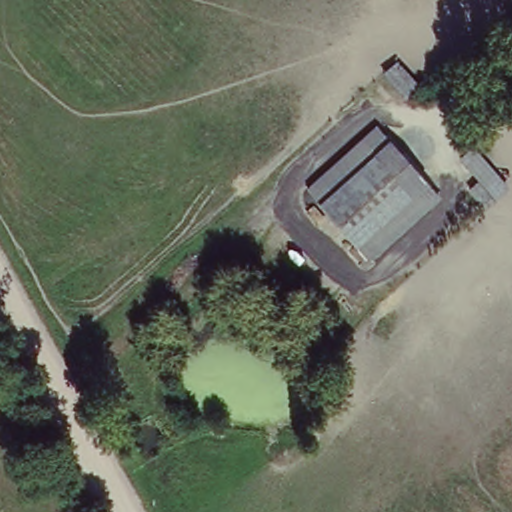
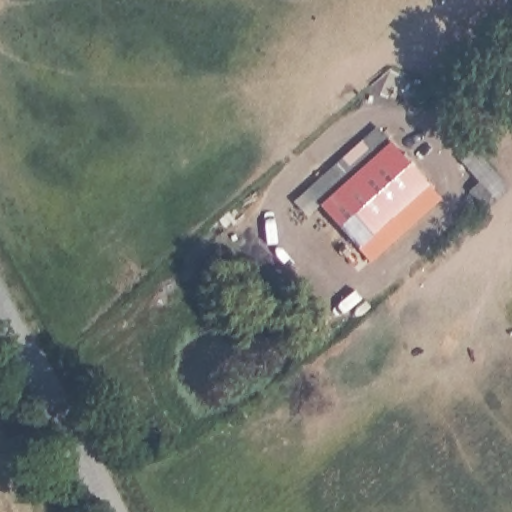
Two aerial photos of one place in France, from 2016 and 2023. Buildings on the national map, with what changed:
unchanged [(371,264),(302,187),(376,120),(445,200),(371,264)]
unchanged [(487,207),(470,191),(478,184),(458,160),(475,145),(512,186),(512,188),(487,207)]

